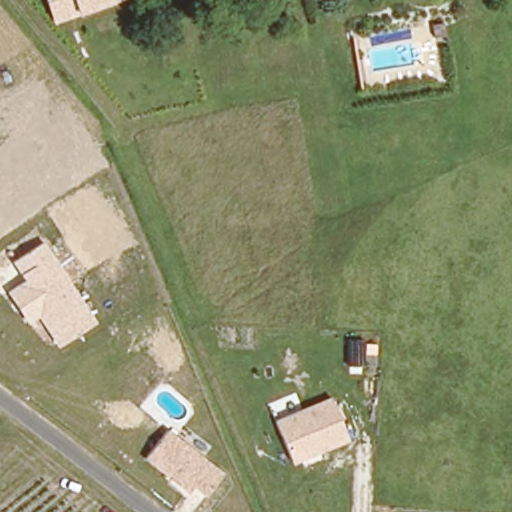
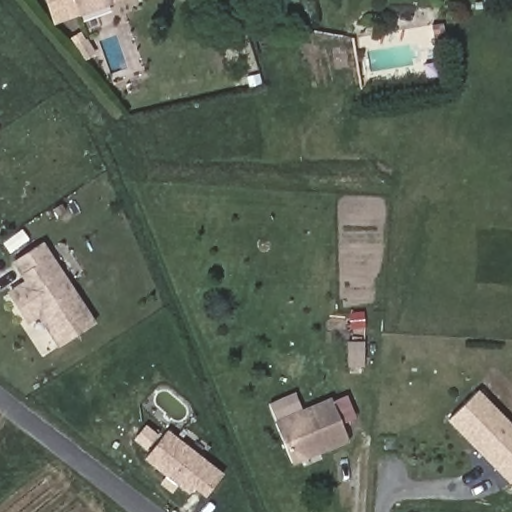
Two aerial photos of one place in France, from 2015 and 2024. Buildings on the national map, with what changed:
unchanged [(78,14),(54,24),(45,0),(121,0),(112,4),(78,14)]
unchanged [(262,7),(261,0),(286,0),(286,4),(262,7)]
unchanged [(441,38),(431,39),(428,25),(439,24),(441,38)]
unchanged [(29,324),(7,292),(26,280),(21,274),(12,262),(44,242),(97,322),(58,348),(38,318),(29,324)]
new [(509,484),(447,420),(480,389),(512,422),(512,481),(509,484)]
unchanged [(293,464),(275,420),(331,397),(350,442),(293,464)]
unchanged [(194,489),(189,493),(146,459),(169,430),(224,473),(206,497),(194,489)]

